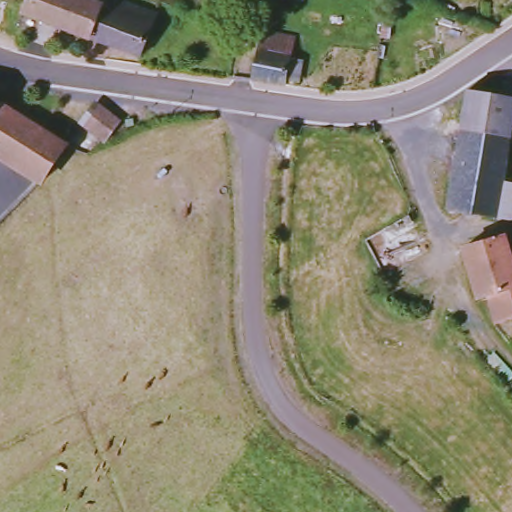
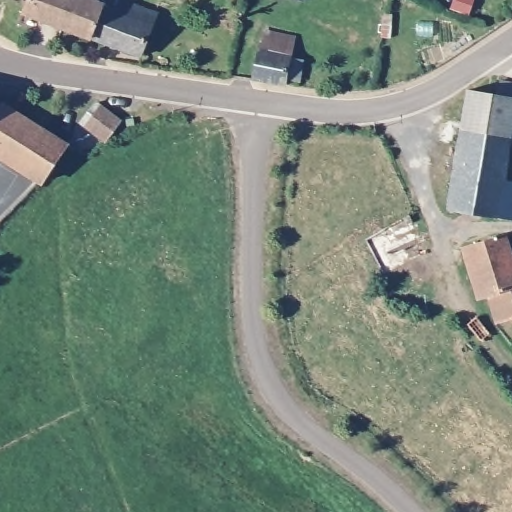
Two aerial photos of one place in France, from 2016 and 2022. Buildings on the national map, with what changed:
unchanged [(0,2),(0,0),(18,0),(13,9),(0,2)]
unchanged [(29,0),(84,0),(103,0),(101,7),(90,44),(22,14),(29,0)]
unchanged [(304,2),(295,0),(304,0),(304,2)]
unchanged [(90,44),(101,7),(111,12),(119,2),(157,17),(137,64),(90,44)]
unchanged [(265,49),(269,30),(299,36),(295,55),(295,58),(308,60),(302,84),(289,81),(288,87),(257,82),(265,49)]
unchanged [(469,119),(474,97),(486,98),(502,100),(506,87),(512,88),(512,141),(466,135),(469,119)]
unchanged [(0,156),(0,105),(72,145),(47,182),(0,156)]
unchanged [(109,142),(86,125),(100,109),(123,123),(109,142)]
unchanged [(142,116),(152,114),(154,126),(144,128),(142,116)]
unchanged [(450,213),(465,140),(466,135),(512,141),(512,172),(510,185),(512,186),(512,222),(450,213)]
unchanged [(506,325),(500,299),(487,302),(467,250),(509,238),(512,248),(512,327),(509,328),(506,325)]

